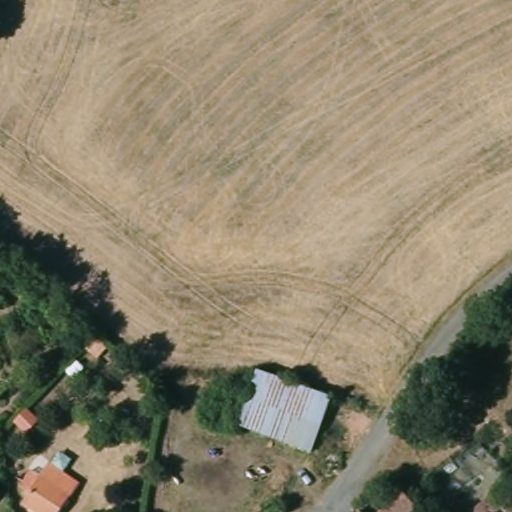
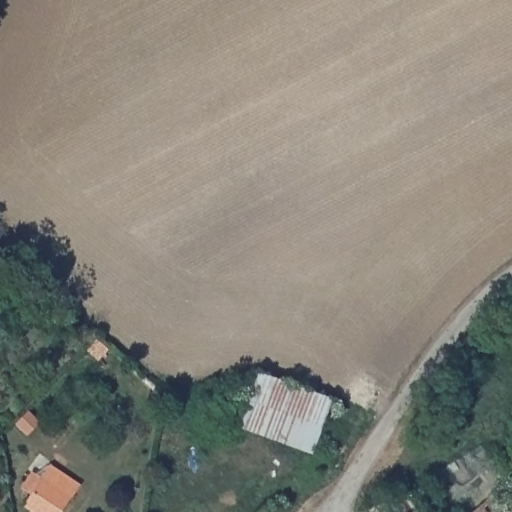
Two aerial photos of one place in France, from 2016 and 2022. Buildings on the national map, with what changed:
unchanged [(328,398),(306,452),(235,427),(256,372),(328,398)]
unchanged [(40,482),(47,468),(75,486),(61,512),(27,512),(23,510),(29,502),(18,496),(30,476),(40,482)]
unchanged [(512,471),(512,512),(472,512),(498,490),(507,481),(505,477),(512,471)]
unchanged [(352,508),(392,482),(416,511),(417,512),(355,512),(352,508)]

